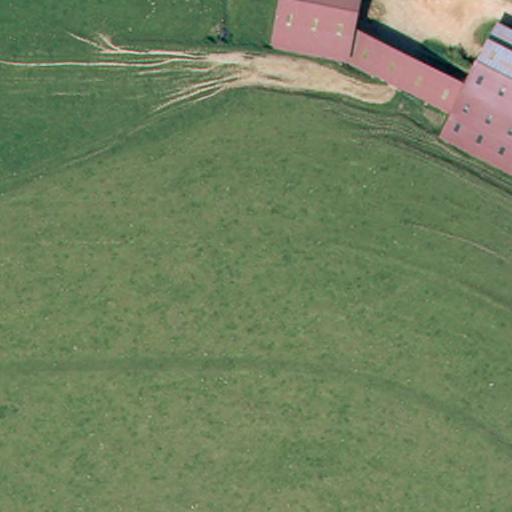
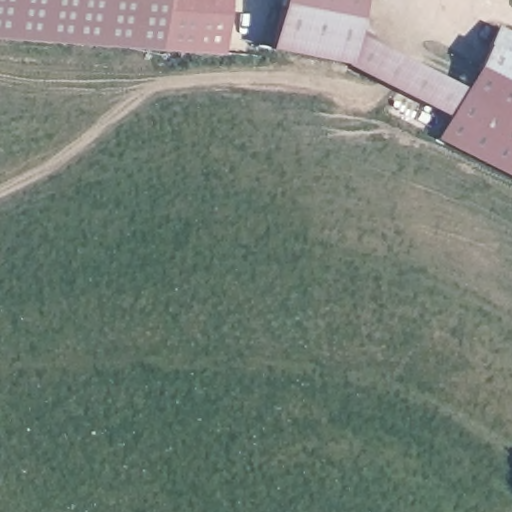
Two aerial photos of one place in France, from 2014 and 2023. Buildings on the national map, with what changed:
new [(164,51),(0,40),(0,0),(168,0),(164,51)]
unchanged [(269,49),(278,0),(354,0),(343,64),(269,49)]
unchanged [(512,31),(512,166),(446,136),(456,115),(467,89),(496,24),(512,31)]
unchanged [(343,64),(355,38),(467,89),(456,115),(343,64)]

